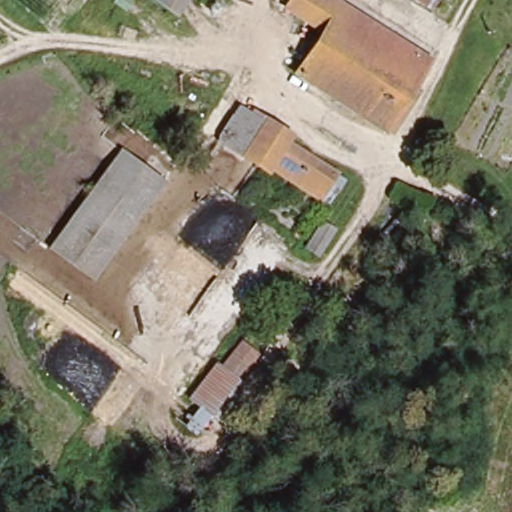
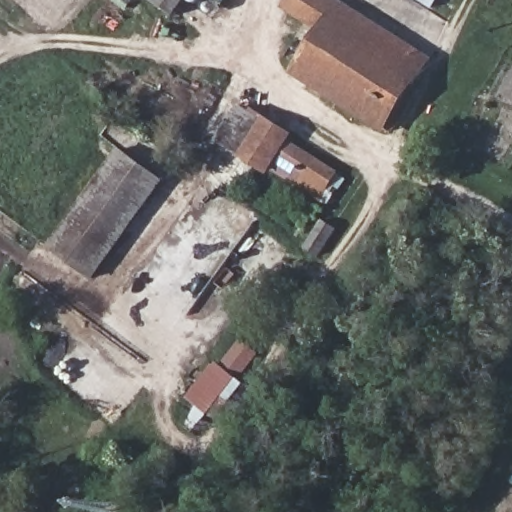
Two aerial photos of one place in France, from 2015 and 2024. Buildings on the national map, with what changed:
unchanged [(171,15),(151,0),(184,0),(171,15)]
unchanged [(432,68),(383,130),(301,72),(329,36),(291,9),(298,0),(332,0),(432,68)]
unchanged [(431,10),(416,0),(437,0),(431,10)]
unchanged [(246,105),(295,136),(340,175),(320,203),(274,172),(218,142),(246,105)]
unchanged [(94,280),(49,250),(122,149),(164,182),(94,280)]
unchanged [(336,228),(320,255),(306,249),(322,221),(336,228)]
unchanged [(177,416),(216,361),(223,366),(242,340),(257,356),(240,381),(247,384),(218,421),(212,416),(198,435),(177,416)]

